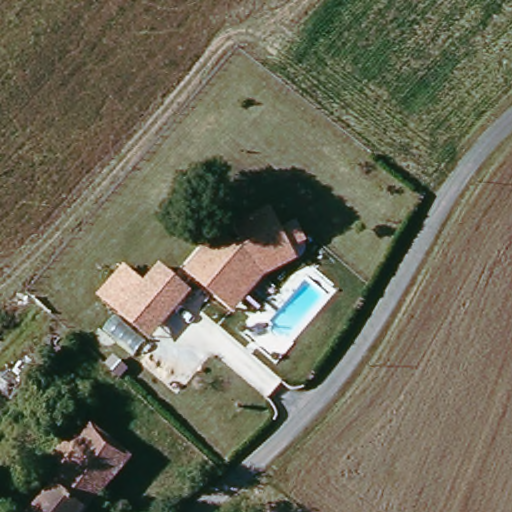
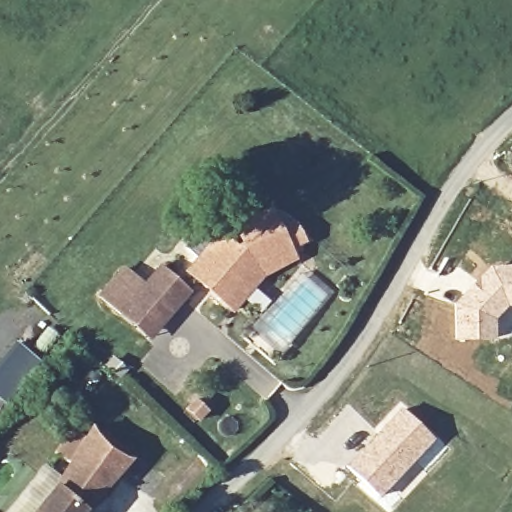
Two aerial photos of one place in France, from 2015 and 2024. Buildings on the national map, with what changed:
unchanged [(265,277),(234,312),(186,271),(224,233),(236,245),(241,243),(234,226),(272,207),(297,259),(265,277)]
unchanged [(151,340),(117,312),(160,263),(193,293),(151,340)]
unchanged [(98,296),(124,265),(144,282),(117,312),(98,296)]
new [(488,265),(512,265),(512,307),(508,307),(495,319),(496,338),(455,340),(452,303),(477,275),(488,265)]
new [(7,407),(0,401),(0,359),(16,340),(42,363),(7,407)]
new [(399,407),(434,439),(380,496),(346,464),(399,407)]
unchanged [(62,473),(44,460),(65,424),(82,436),(91,426),(129,457),(88,504),(81,512),(31,512),(62,473)]

